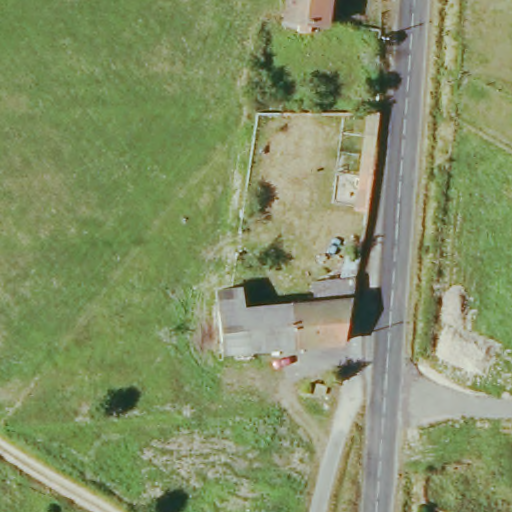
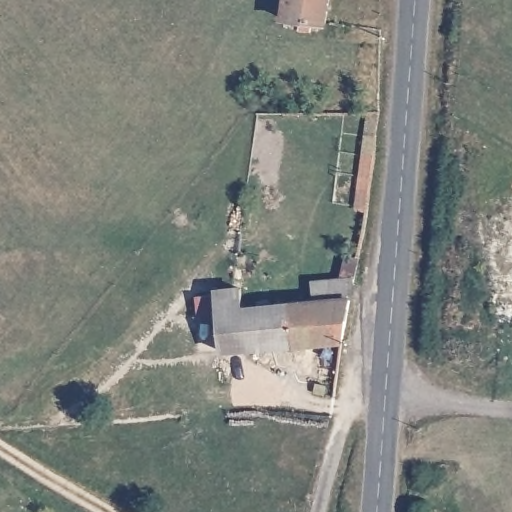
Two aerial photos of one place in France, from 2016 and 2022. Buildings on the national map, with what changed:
unchanged [(290,25),(294,0),(342,0),(337,31),(333,30),(331,42),(294,35),(296,25),(290,25)]
unchanged [(287,25),(282,49),(267,46),(272,22),(287,25)]
unchanged [(263,348),(223,351),(215,290),(240,288),(243,308),(311,301),(312,283),(340,282),(347,255),(358,257),(353,282),(341,345),(263,348)]

